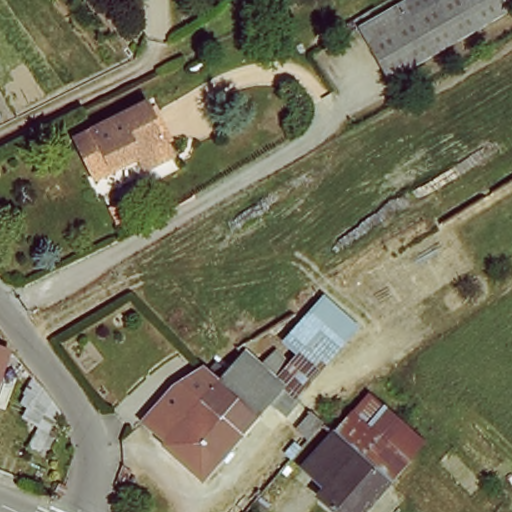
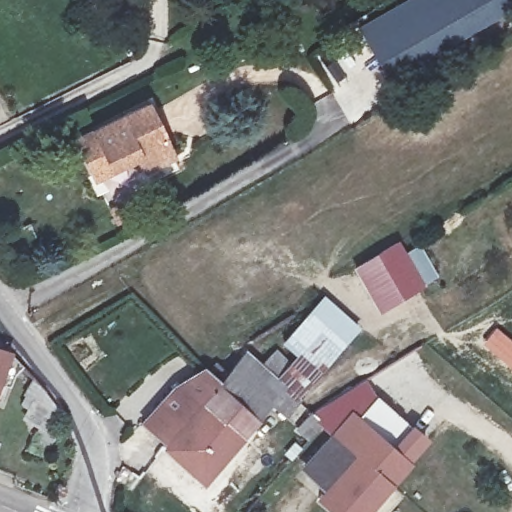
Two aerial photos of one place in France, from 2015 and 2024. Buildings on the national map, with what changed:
unchanged [(512,0),(512,6),(390,78),(365,40),(369,35),(435,0),(512,0)]
unchanged [(171,159),(143,173),(135,156),(88,179),(71,143),(144,106),(171,159)]
new [(355,267),(399,242),(424,286),(380,313),(355,267)]
unchanged [(279,379),(290,367),(272,352),(322,295),(360,326),(304,403),(279,379)]
unchanged [(23,368),(18,377),(3,366),(0,372),(0,352),(12,357),(23,368)]
unchanged [(291,418),(275,405),(205,479),(146,425),(204,365),(224,382),(252,355),(279,379),(304,403),(291,418)]
unchanged [(30,378),(59,417),(44,462),(25,454),(34,433),(18,422),(24,413),(16,403),(30,378)]
unchanged [(424,446),(405,467),(367,512),(328,512),(316,502),(322,492),(295,471),(365,394),(424,446)]

